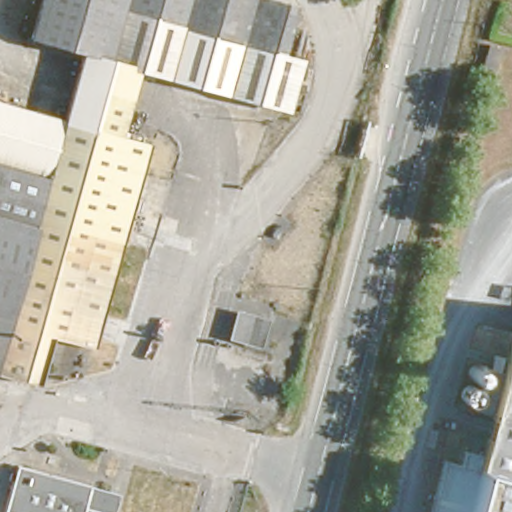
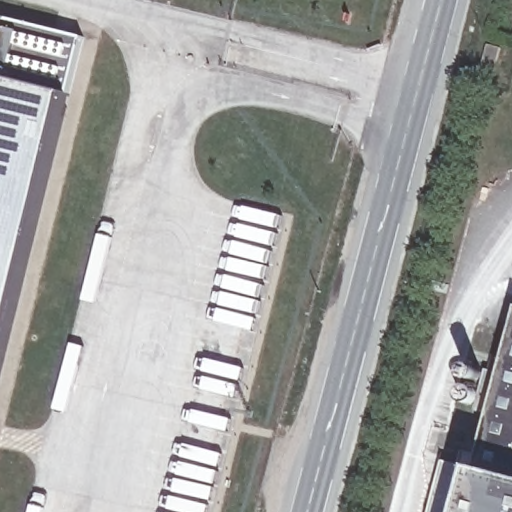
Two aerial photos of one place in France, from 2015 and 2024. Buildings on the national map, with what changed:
demolished [(86,52),(34,37),(45,0),(272,0),(296,7),(281,59),(302,65),(288,111),(139,68),(118,135),(147,144),(118,242),(88,235),(0,214),(0,100),(66,119),(86,52)]
new [(65,95),(0,362),(0,17),(79,36),(65,95)]
demolished [(466,54),(476,20),(491,24),(482,58),(466,54)]
unchanged [(473,80),(483,46),(499,50),(490,84),(473,80)]
demolished [(42,338),(29,382),(0,374),(0,214),(88,235),(118,242),(87,350),(42,338)]
demolished [(222,337),(231,314),(258,322),(251,346),(222,337)]
unchanged [(442,454),(458,457),(463,437),(487,443),(497,406),(480,402),(481,391),(473,391),(467,385),(468,379),(472,376),(478,372),(487,375),(490,365),(507,368),(512,348),(512,512),(425,512),(442,454)]
demolished [(112,512),(10,512),(2,510),(15,463),(91,484),(86,505),(112,512)]

